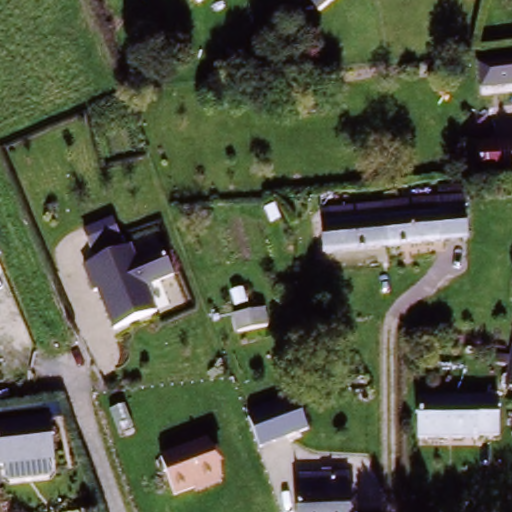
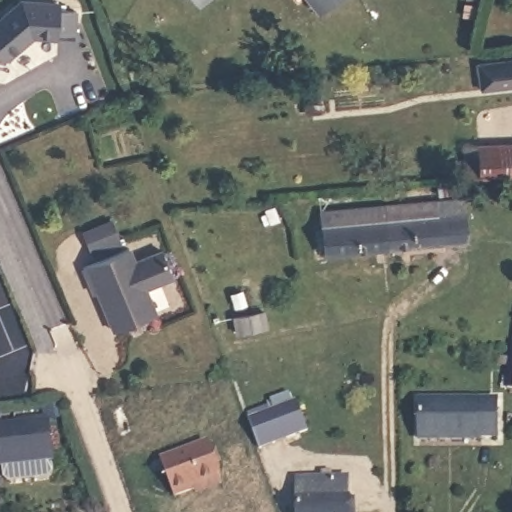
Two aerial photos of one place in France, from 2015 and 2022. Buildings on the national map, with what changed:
unchanged [(192,0),(207,0),(198,7),(192,0)]
unchanged [(309,0),(336,0),(319,12),(309,0)]
new [(60,14),(78,15),(76,38),(59,37),(59,44),(35,43),(24,46),(26,50),(6,68),(0,62),(0,27),(23,6),(60,8),(60,14)]
unchanged [(489,89),(484,64),(512,61),(512,87),(489,89)]
unchanged [(300,103),(301,118),(271,122),(267,96),(279,95),(281,104),(300,103)]
unchanged [(497,152),(512,150),(512,180),(502,181),(497,152)]
unchanged [(497,152),(502,181),(466,185),(462,155),(497,152)]
unchanged [(438,179),(456,177),(457,192),(439,194),(438,179)]
unchanged [(463,198),(468,239),(443,242),(438,201),(463,198)]
unchanged [(381,208),(438,201),(443,242),(385,249),(383,226),(381,208)]
unchanged [(383,226),(321,233),(319,216),(381,208),(383,226)]
unchanged [(116,335),(99,294),(96,295),(85,269),(98,265),(84,233),(110,224),(123,251),(131,248),(138,261),(164,250),(175,280),(148,291),(157,316),(116,335)]
unchanged [(385,249),(324,256),(321,233),(383,226),(385,249)]
unchanged [(271,330),(241,336),(237,318),(266,312),(271,330)]
unchanged [(507,401),(512,372),(512,402),(507,401)]
unchanged [(419,406),(494,400),(499,439),(424,446),(419,406)]
unchanged [(253,452),(244,423),(295,407),(306,435),(253,452)]
unchanged [(50,464),(43,464),(44,478),(9,480),(6,467),(0,468),(0,424),(45,422),(50,464)]
unchanged [(209,440),(222,482),(176,501),(160,460),(209,440)]
unchanged [(294,481),(344,477),(346,487),(348,512),(297,512),(295,491),(294,481)]

